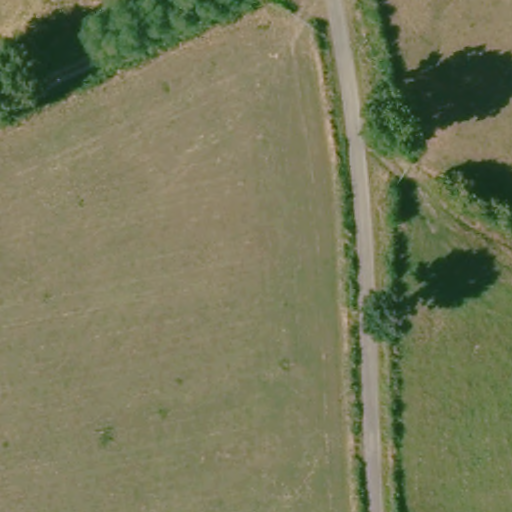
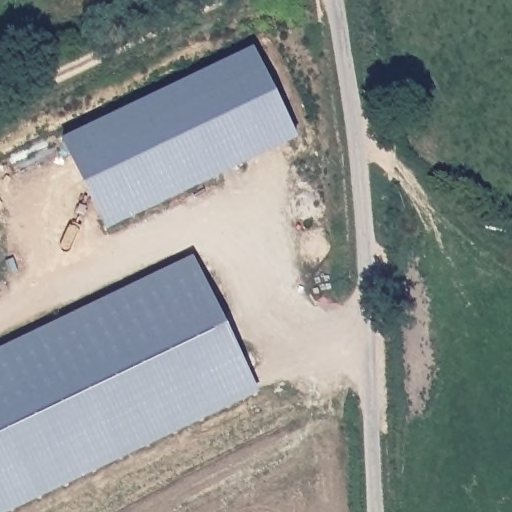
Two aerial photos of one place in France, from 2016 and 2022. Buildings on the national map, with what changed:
new [(106,229),(62,139),(254,46),(297,136),(106,229)]
new [(257,393),(10,512),(0,512),(0,349),(193,256),(257,393)]

